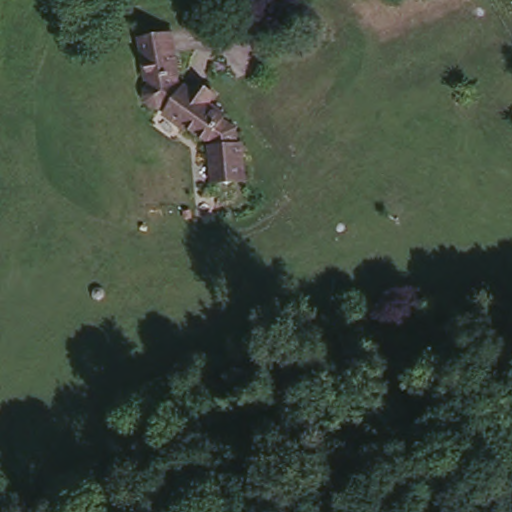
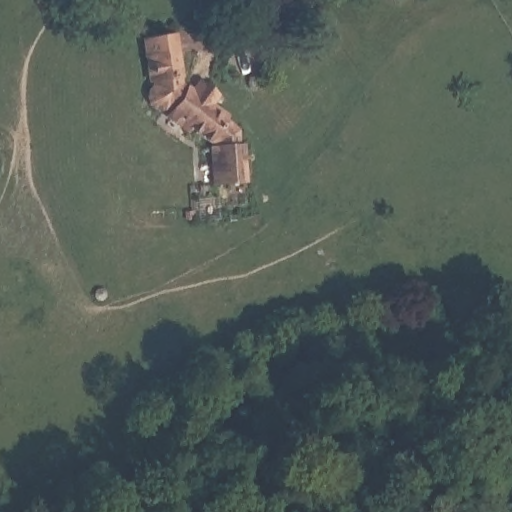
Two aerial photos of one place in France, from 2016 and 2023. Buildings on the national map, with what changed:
unchanged [(170,120),(176,113),(166,105),(158,105),(148,94),(156,81),(151,76),(149,53),(148,33),(177,32),(179,51),(181,82),(198,92),(204,82),(218,94),(212,103),(228,115),(224,121),(239,131),(239,146),(244,147),(247,186),(215,186),(214,143),(193,127),(187,134),(170,120)]

